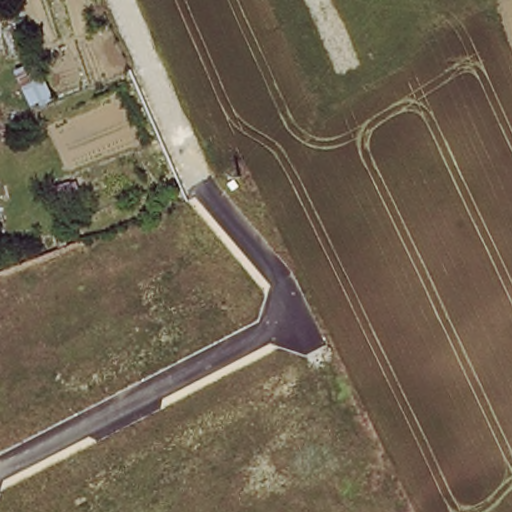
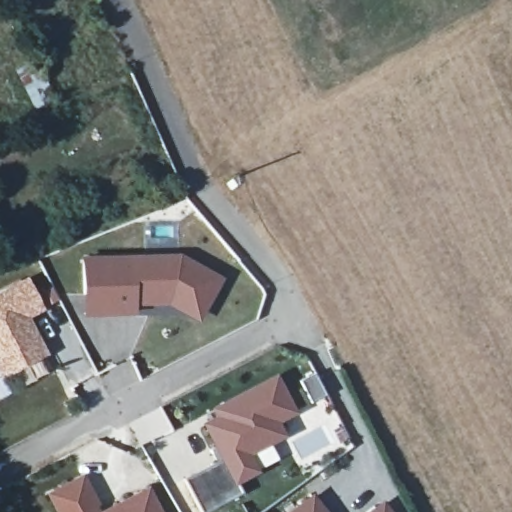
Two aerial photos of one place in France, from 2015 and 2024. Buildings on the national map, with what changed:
new [(132,262),(180,260),(221,282),(200,320),(170,303),(134,304),(134,316),(109,317),(108,267),(132,267),(132,262)]
new [(109,317),(85,317),(84,262),(132,262),(132,267),(108,267),(109,317)]
new [(27,277),(44,311),(29,319),(48,356),(41,360),(47,373),(23,386),(16,374),(1,380),(0,379),(0,292),(27,277)]
new [(201,425),(216,417),(212,410),(277,376),(298,415),(281,423),(286,437),(250,455),(260,474),(238,486),(241,494),(209,512),(200,512),(184,479),(220,461),(201,425)]
new [(101,512),(53,512),(45,495),(82,475),(101,512)]
new [(160,512),(102,512),(148,487),(160,512)]
new [(325,512),(289,512),(313,495),(325,512)]
new [(389,512),(370,512),(383,503),(389,512)]

